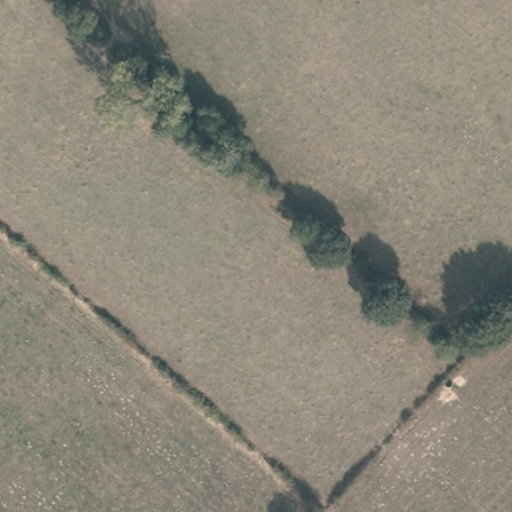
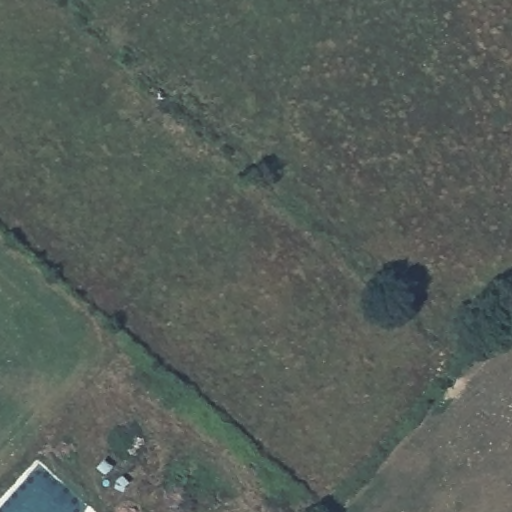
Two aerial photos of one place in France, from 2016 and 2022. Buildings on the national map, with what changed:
[]

